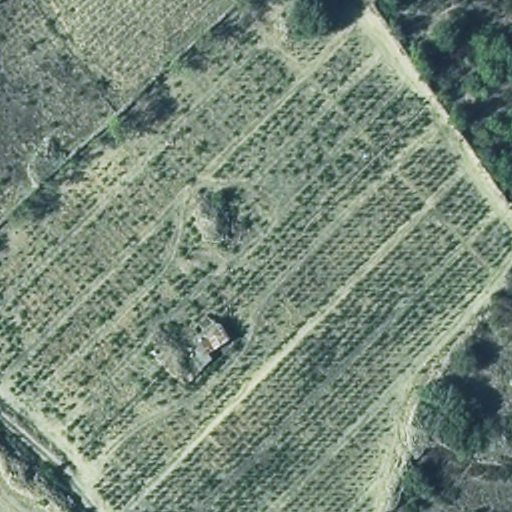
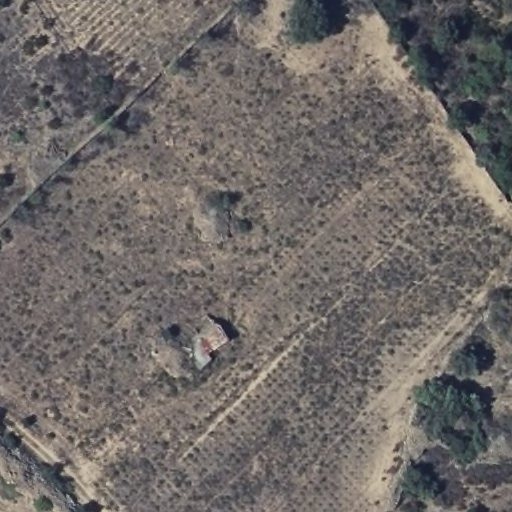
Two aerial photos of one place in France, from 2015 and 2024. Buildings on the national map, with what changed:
unchanged [(213,323),(228,338),(211,351),(195,339),(213,323)]

